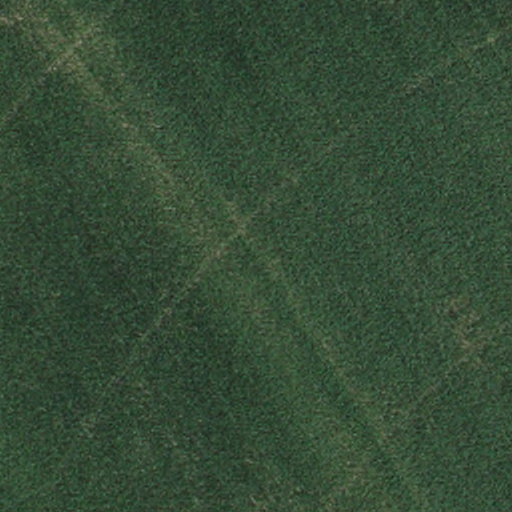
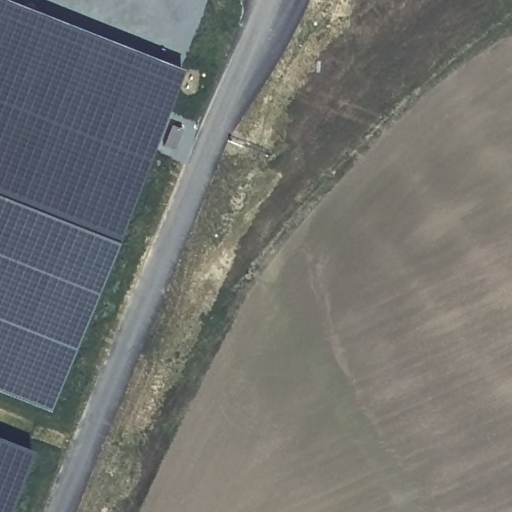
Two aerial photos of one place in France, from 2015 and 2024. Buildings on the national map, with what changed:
new [(0,394),(0,1),(180,71),(44,412),(0,394)]
new [(0,512),(0,441),(27,452),(4,512),(0,512)]

